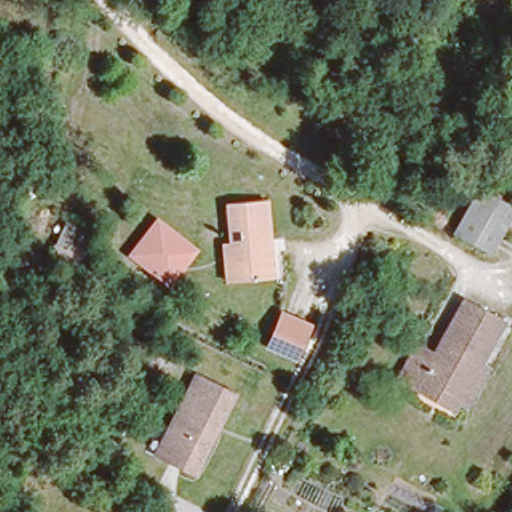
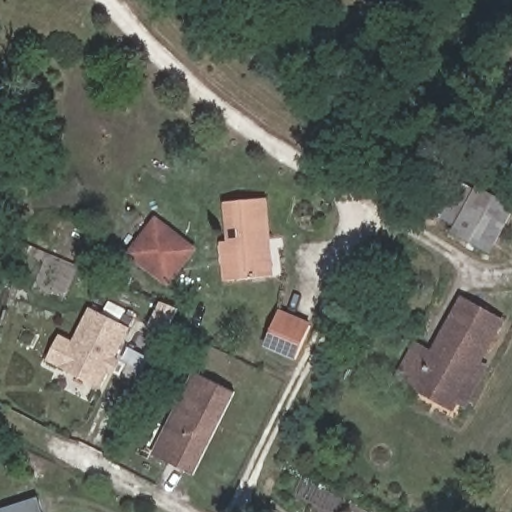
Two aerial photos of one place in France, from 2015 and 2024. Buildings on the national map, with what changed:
unchanged [(512,203),(512,206),(491,246),(452,227),(476,185),(512,203)]
unchanged [(268,270),(234,277),(227,240),(234,237),(226,197),(262,191),(271,231),(280,268),(268,270)]
unchanged [(200,249),(171,290),(127,256),(156,215),(200,249)]
unchanged [(94,232),(80,266),(50,253),(65,218),(94,232)]
unchanged [(460,405),(415,381),(396,371),(412,340),(432,349),(460,297),(495,315),(471,360),(482,364),(460,405)]
new [(117,358),(122,362),(116,376),(110,372),(101,388),(47,361),(59,335),(72,342),(90,307),(132,328),(117,358)]
unchanged [(298,360),(269,346),(283,316),(312,330),(298,360)]
unchanged [(166,432),(195,376),(233,396),(190,478),(161,462),(152,457),(166,432)]
new [(39,498),(44,512),(2,512),(2,510),(39,498)]

